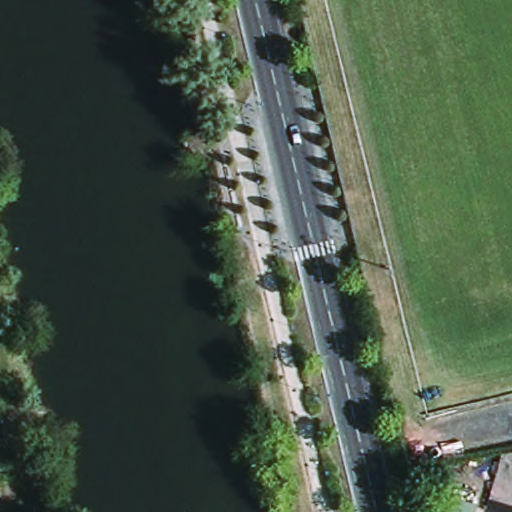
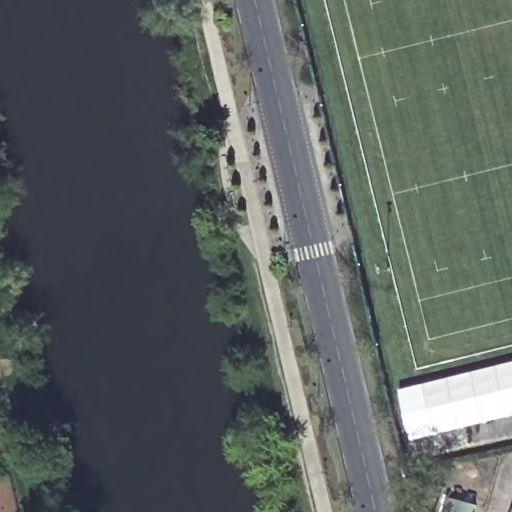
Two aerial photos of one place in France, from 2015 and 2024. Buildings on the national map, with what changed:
new [(512,359),(512,416),(410,440),(397,389),(512,359)]
unchanged [(478,512),(450,512),(453,504),(479,511),(478,512)]

